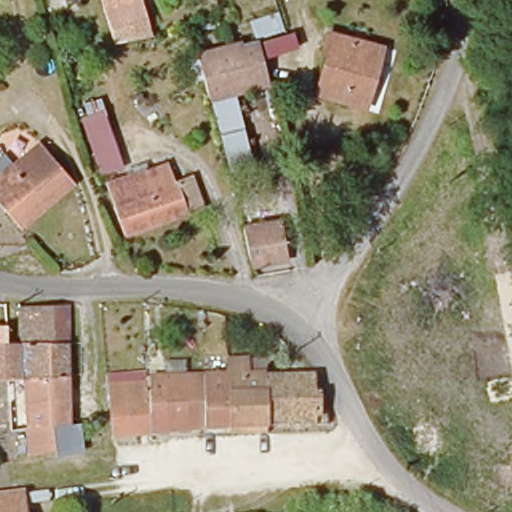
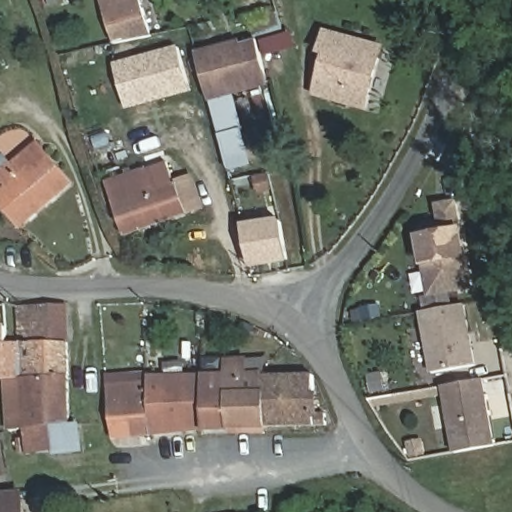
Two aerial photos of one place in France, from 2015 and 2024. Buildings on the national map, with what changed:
unchanged [(81,5),(49,14),(44,0),(80,0),(81,5)]
unchanged [(113,40),(103,6),(119,0),(139,0),(152,34),(113,40)]
unchanged [(386,46),(379,75),(391,79),(383,106),(373,101),(369,114),(313,98),(324,30),(386,46)]
unchanged [(207,104),(194,55),(246,40),(265,39),(275,85),(207,104)]
new [(179,46),(191,91),(126,109),(114,64),(179,46)]
unchanged [(125,170),(101,179),(81,120),(106,111),(125,170)]
unchanged [(0,159),(10,154),(18,165),(50,150),(71,190),(10,225),(0,208),(0,159)]
unchanged [(153,172),(161,197),(173,195),(180,222),(123,235),(110,185),(153,172)]
new [(474,288),(429,297),(417,235),(423,224),(439,221),(436,204),(459,200),(474,288)]
unchanged [(283,220),(288,266),(249,270),(243,227),(283,220)]
unchanged [(71,305),(73,340),(31,341),(26,341),(25,302),(71,305)]
new [(477,364),(432,373),(420,312),(466,304),(477,364)]
unchanged [(22,341),(26,341),(31,341),(73,340),(75,378),(61,379),(56,380),(25,381),(11,382),(2,383),(1,366),(0,366),(0,342),(5,342),(22,341)]
unchanged [(267,422),(262,374),(309,370),(335,415),(267,422)]
unchanged [(235,426),(229,377),(262,374),(267,422),(235,426)]
unchanged [(197,430),(192,380),(229,377),(235,426),(197,430)]
unchanged [(78,430),(61,430),(31,432),(25,381),(56,380),(61,379),(75,378),(78,430)]
new [(496,445),(454,452),(442,385),(485,378),(496,445)]
unchanged [(146,436),(142,384),(192,380),(197,430),(146,436)]
unchanged [(112,440),(110,422),(105,387),(142,384),(146,436),(112,440)]
unchanged [(410,463),(414,436),(437,440),(432,467),(410,463)]
unchanged [(28,496),(30,512),(0,512),(0,500),(13,498),(28,496)]

